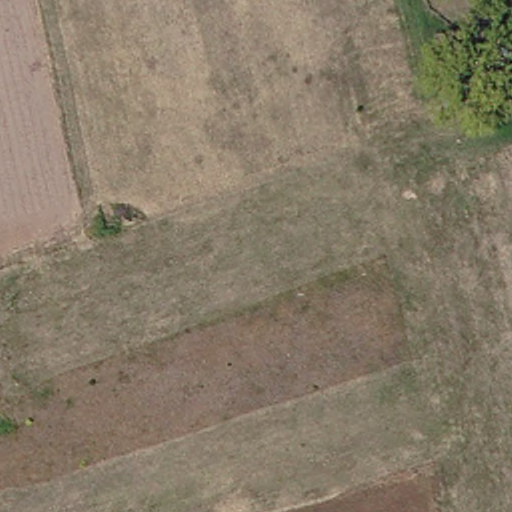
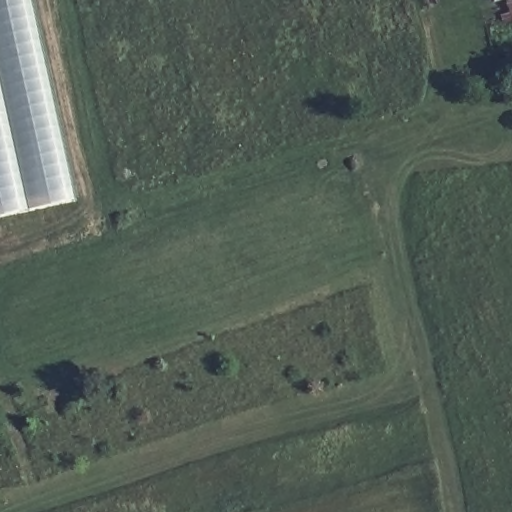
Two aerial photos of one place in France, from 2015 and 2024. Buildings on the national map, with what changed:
new [(0,215),(0,0),(32,0),(75,198),(0,215)]

